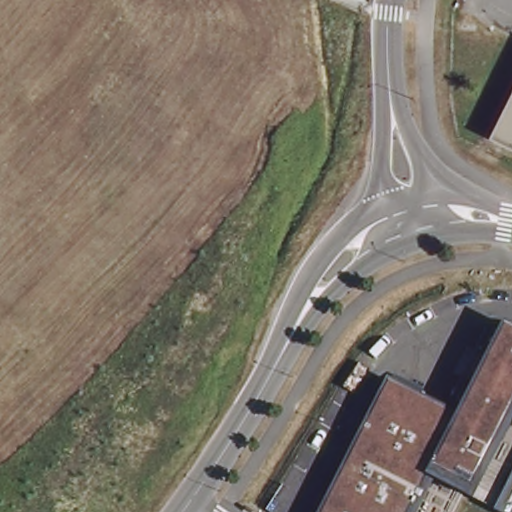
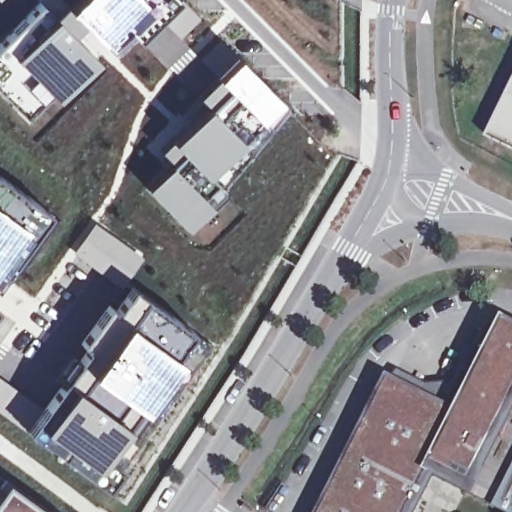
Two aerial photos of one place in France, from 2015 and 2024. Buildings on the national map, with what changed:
new [(74,7),(81,0),(170,0),(115,53),(74,7)]
new [(95,56),(47,100),(37,94),(21,112),(0,92),(0,79),(3,75),(0,73),(0,45),(43,3),(95,56)]
new [(250,67),(292,108),(217,175),(221,182),(180,226),(140,192),(176,162),(163,147),(173,137),(203,104),(194,94),(233,53),(250,67)]
unchanged [(512,92),(512,148),(490,136),(503,110),(512,92)]
new [(62,218),(38,251),(45,253),(7,304),(0,300),(0,177),(62,218)]
new [(89,348),(82,341),(107,304),(115,310),(132,286),(201,337),(114,462),(120,466),(107,487),(29,429),(89,348)]
new [(4,315),(0,321),(0,313),(4,315)]
unchanged [(495,511),(474,500),(433,480),(416,512),(318,512),(388,379),(458,414),(505,323),(512,324),(512,512),(496,512),(495,511)]
new [(7,481),(49,512),(0,512),(0,490),(7,481)]

